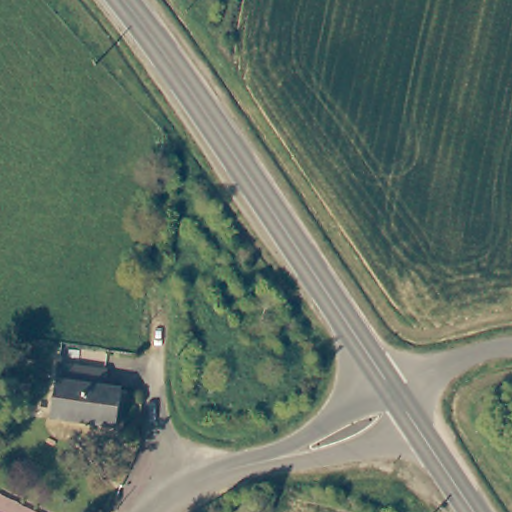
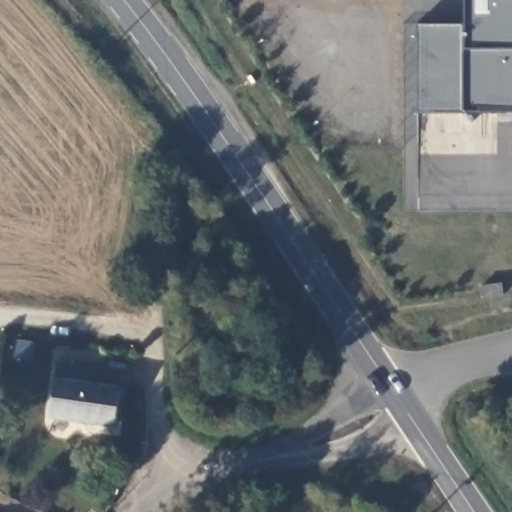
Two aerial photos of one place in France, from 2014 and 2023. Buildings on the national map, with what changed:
new [(418,25),(464,25),(464,0),(512,0),(512,113),(418,112),(418,25)]
unchanged [(108,370),(106,390),(56,384),(59,363),(108,370)]
unchanged [(52,418),(56,384),(106,390),(122,392),(117,426),(52,418)]

